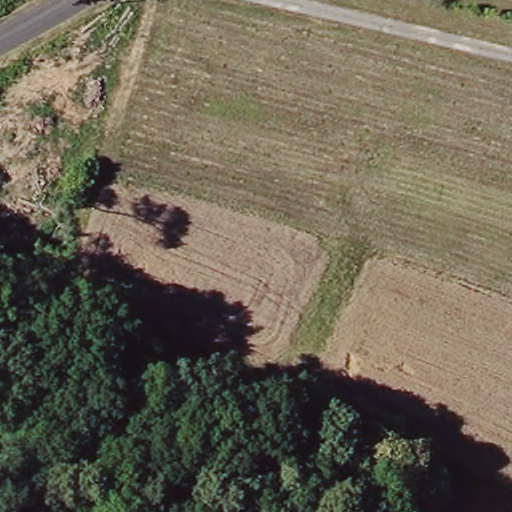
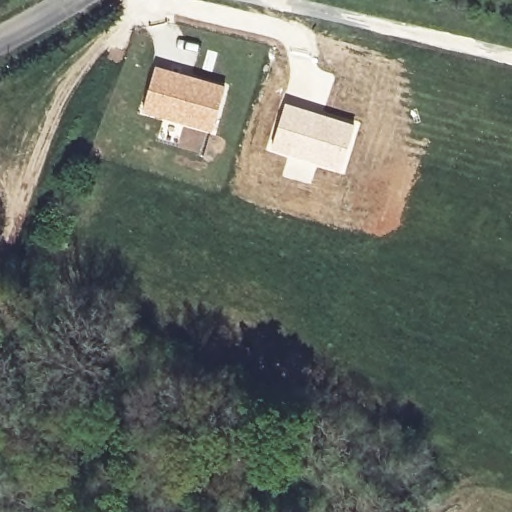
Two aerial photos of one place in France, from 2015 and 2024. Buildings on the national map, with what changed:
new [(154,63),(226,85),(211,134),(139,113),(154,63)]
new [(284,101),(358,123),(344,174),(316,166),(310,183),(281,175),(287,156),(268,150),(284,101)]

